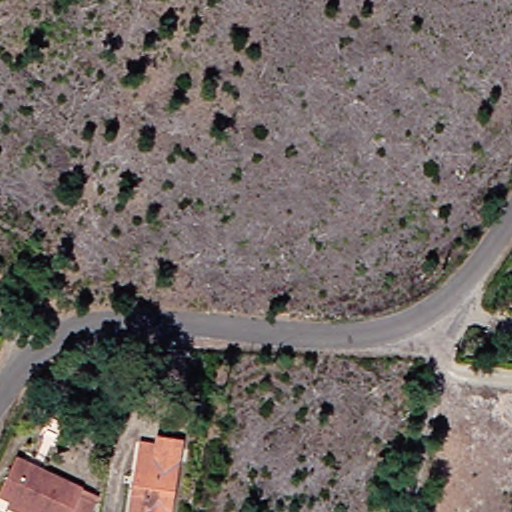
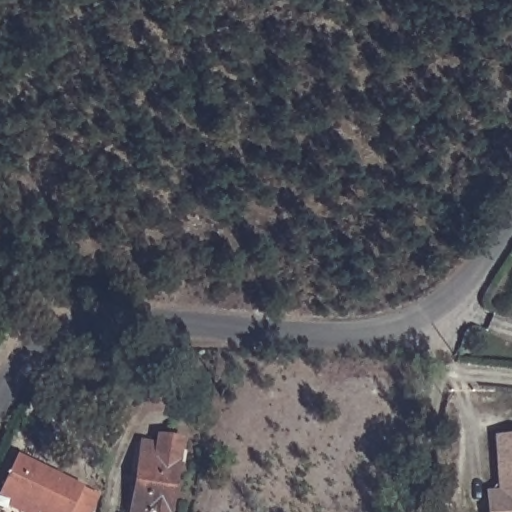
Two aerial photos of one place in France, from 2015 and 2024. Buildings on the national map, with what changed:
unchanged [(135,443),(152,445),(153,437),(175,440),(166,512),(127,512),(127,510),(135,443)]
new [(487,512),(485,491),(497,490),(493,438),(512,437),(512,512),(487,512)]
unchanged [(0,504),(5,495),(0,492),(0,481),(16,451),(76,485),(73,490),(88,500),(81,512),(35,512),(30,509),(28,512),(13,512),(0,505),(0,504)]

